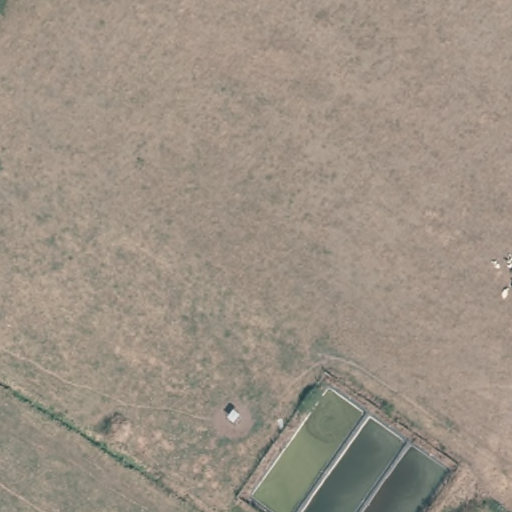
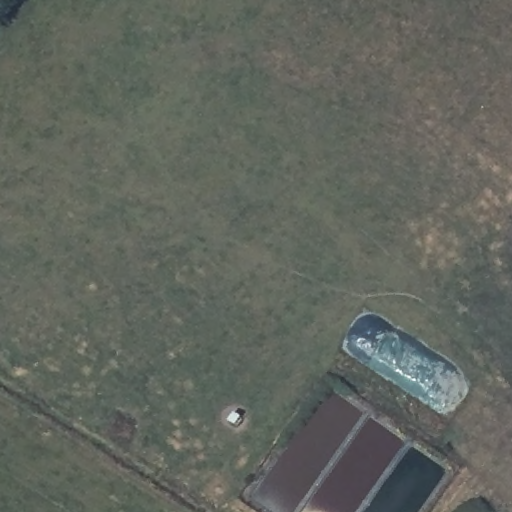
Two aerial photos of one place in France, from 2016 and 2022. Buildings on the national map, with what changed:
[]

